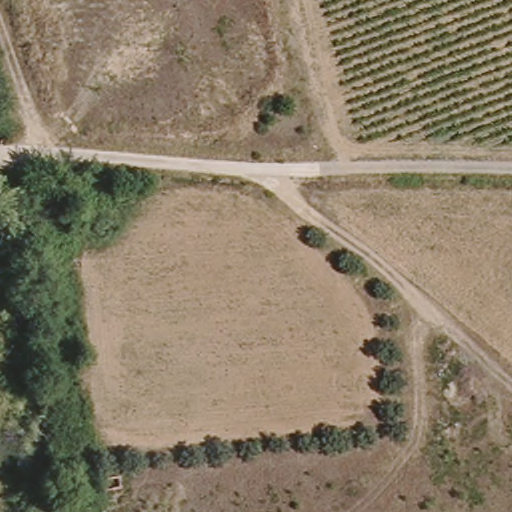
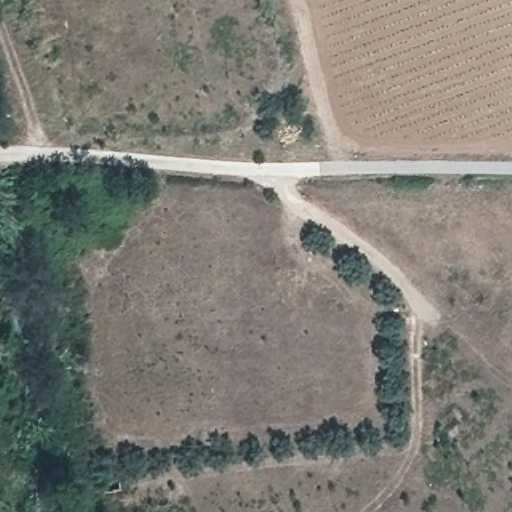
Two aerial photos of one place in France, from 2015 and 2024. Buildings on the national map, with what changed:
unchanged [(98,477),(123,476),(122,493),(103,493),(98,477)]

